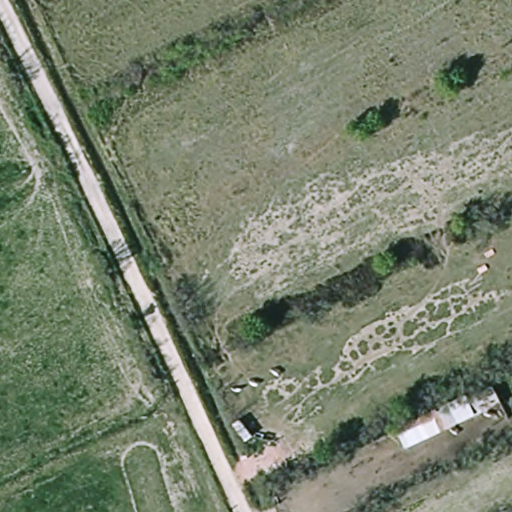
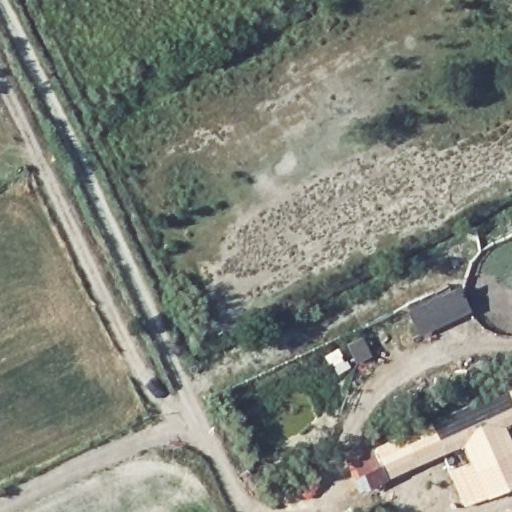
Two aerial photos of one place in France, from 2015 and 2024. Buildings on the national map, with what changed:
new [(457,283),(470,310),(420,335),(406,308),(457,283)]
new [(507,385),(512,383),(512,397),(507,385)]
unchanged [(507,385),(512,397),(512,412),(408,460),(396,438),(507,385)]
new [(396,438),(408,460),(512,412),(512,420),(502,424),(512,446),(512,486),(486,497),(464,504),(447,469),(469,460),(461,444),(359,491),(344,458),(429,417),(431,421),(396,438)]

